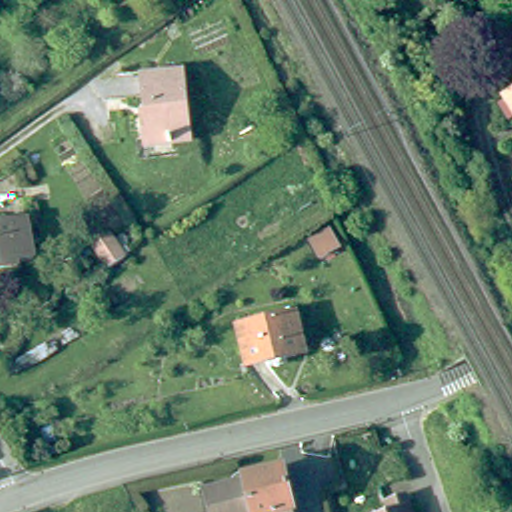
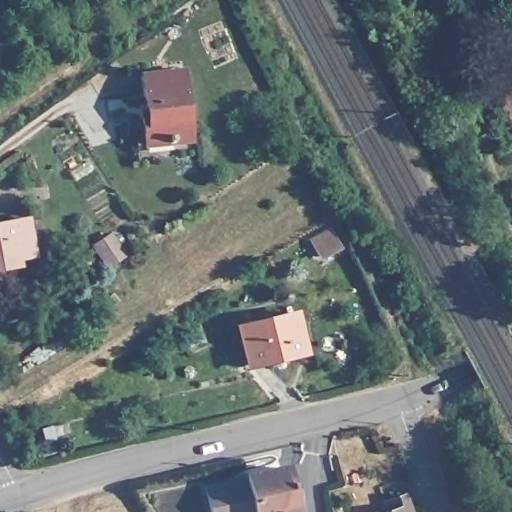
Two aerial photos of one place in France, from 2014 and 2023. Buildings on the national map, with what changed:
unchanged [(185,80),(189,142),(141,145),(140,123),(146,122),(143,82),(185,80)]
unchanged [(505,89),(512,85),(512,103),(505,89)]
unchanged [(35,247),(0,266),(0,219),(23,211),(35,247)]
unchanged [(332,229),(340,247),(321,256),(311,239),(332,229)]
unchanged [(295,313),(305,350),(247,366),(237,330),(295,313)]
unchanged [(201,485),(222,480),(282,463),(292,512),(270,512),(270,511),(268,512),(250,512),(250,511),(248,512),(207,512),(201,485)]
unchanged [(385,503),(382,495),(405,487),(413,512),(365,512),(385,503)]

